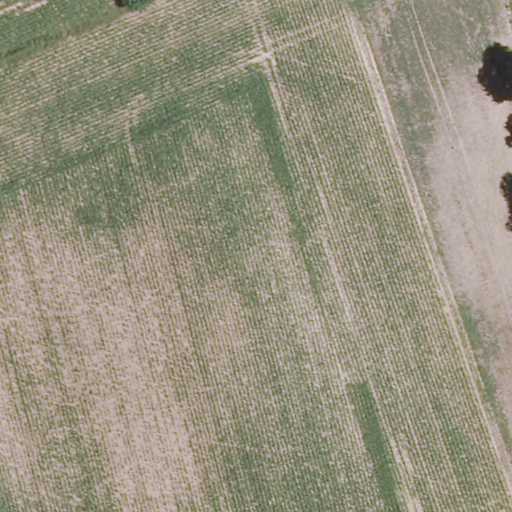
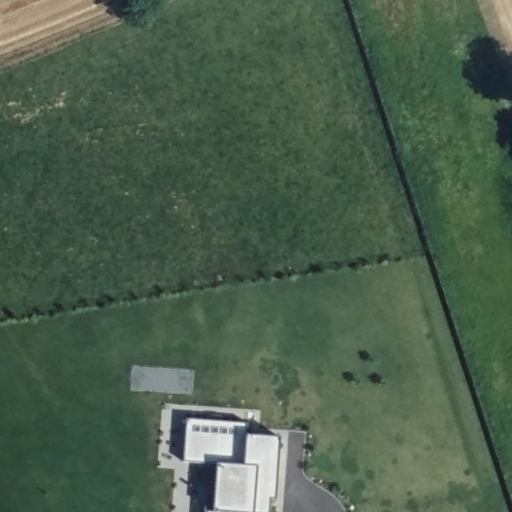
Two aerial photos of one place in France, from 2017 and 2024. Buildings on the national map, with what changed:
new [(217,467),(182,464),(186,421),(247,425),(247,437),(280,440),(275,503),(270,502),(269,512),(213,512),(217,467)]
new [(205,489),(215,490),(213,512),(204,512),(205,489)]

